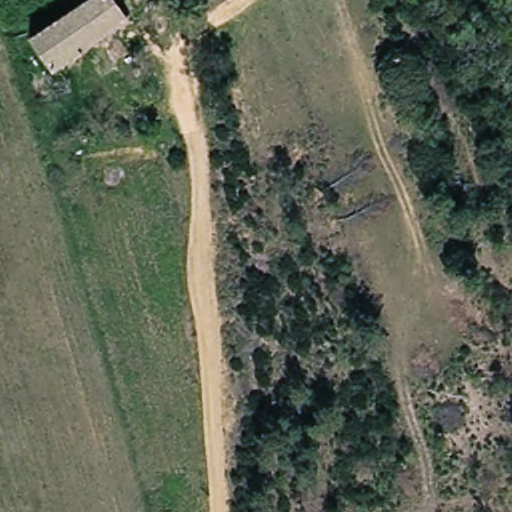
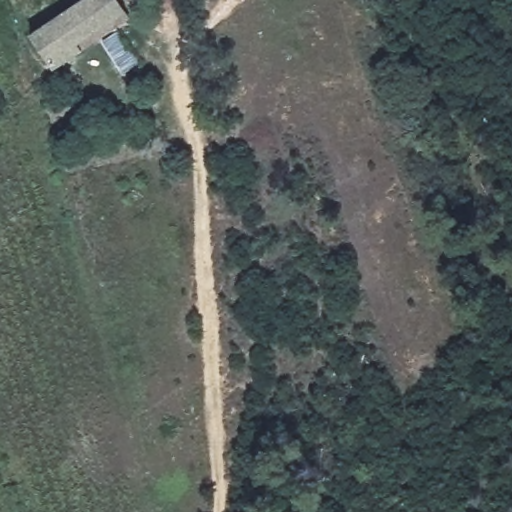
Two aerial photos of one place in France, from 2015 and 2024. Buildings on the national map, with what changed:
unchanged [(117,0),(126,14),(74,47),(79,55),(53,71),(32,37),(86,0),(117,0)]

